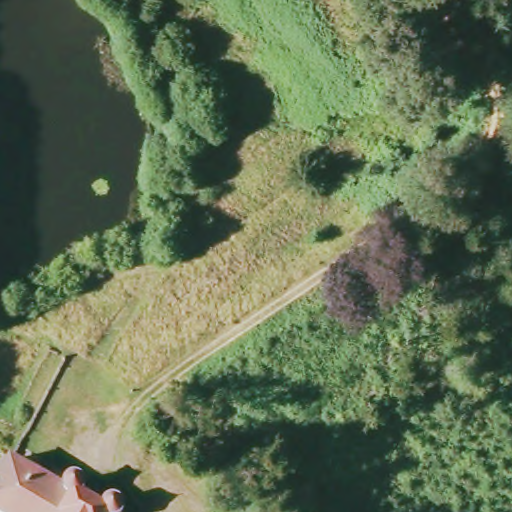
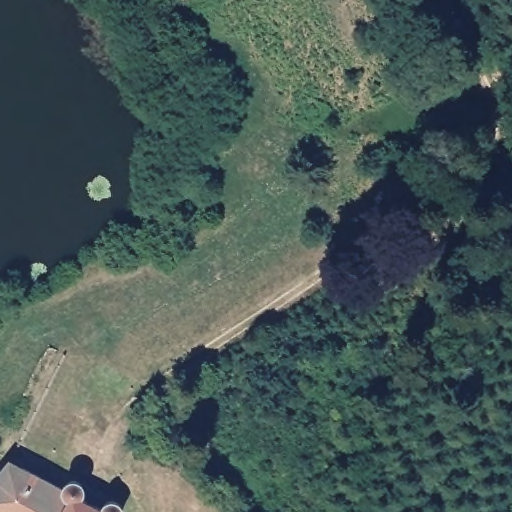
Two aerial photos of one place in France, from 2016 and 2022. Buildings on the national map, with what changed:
unchanged [(71,482),(80,482),(83,486),(83,491),(80,498),(104,510),(109,505),(116,505),(120,506),(122,512),(0,512),(0,470),(8,459),(64,487),(71,482)]

